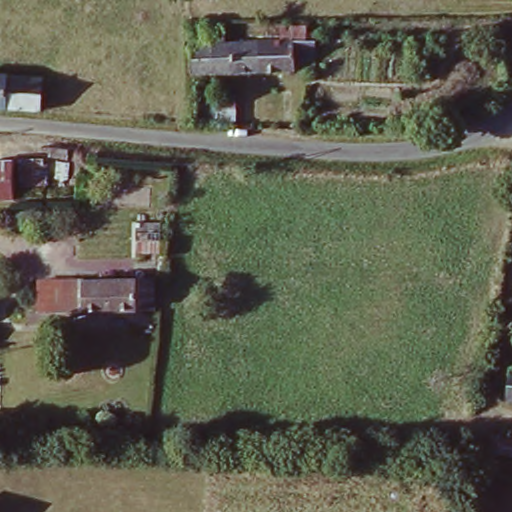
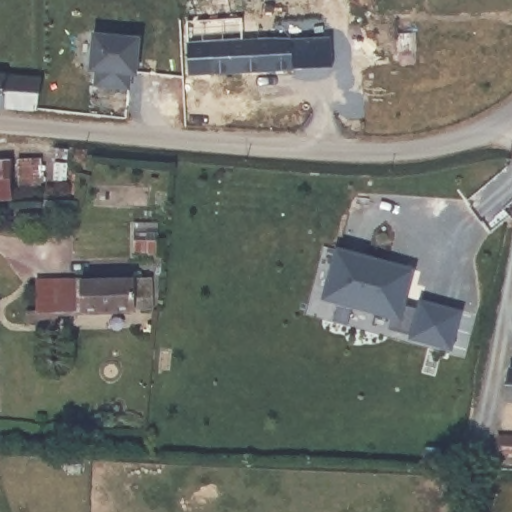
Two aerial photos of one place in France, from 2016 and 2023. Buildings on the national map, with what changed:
unchanged [(312,69),(187,73),(185,26),(222,27),(222,45),(277,44),(277,28),(302,28),(302,42),(312,42),(312,69)]
new [(95,35),(141,39),(138,76),(132,75),(131,90),(96,87),(97,72),(92,71),(95,35)]
unchanged [(39,108),(0,104),(0,71),(42,74),(39,108)]
unchanged [(220,129),(219,98),(237,99),(237,131),(220,129)]
unchanged [(15,194),(0,196),(0,159),(12,158),(15,194)]
new [(413,272),(405,307),(421,310),(422,303),(461,314),(451,350),(412,339),(413,338),(390,331),(393,318),(332,302),(326,299),(333,272),(338,252),(413,272)]
unchanged [(157,273),(157,305),(64,307),(62,318),(34,319),(34,305),(42,304),(43,275),(157,273)]
unchanged [(508,399),(512,368),(512,399),(508,399)]
unchanged [(512,437),(512,457),(484,454),(487,436),(512,437)]

